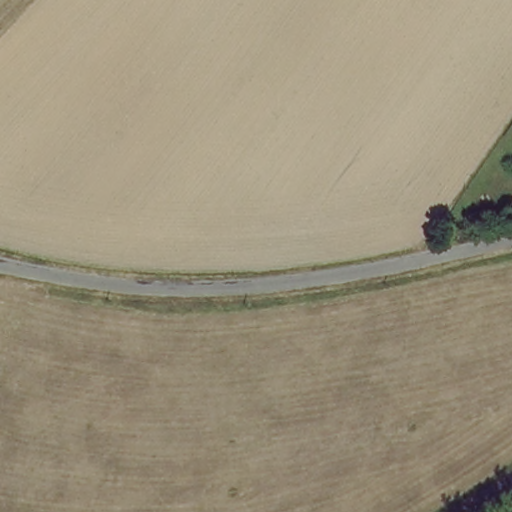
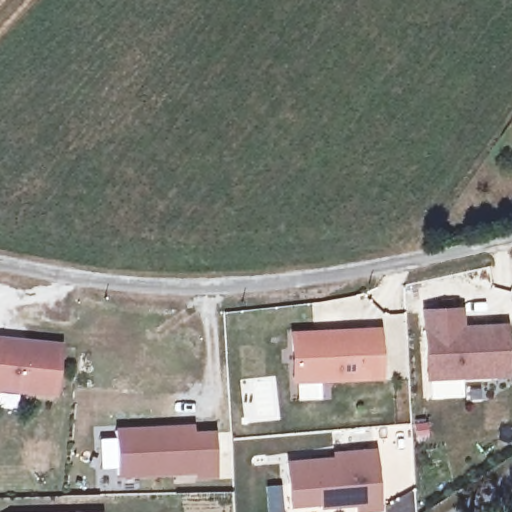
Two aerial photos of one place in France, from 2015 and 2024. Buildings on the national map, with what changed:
new [(507,324),(510,377),(426,380),(423,311),(462,308),(465,326),(507,324)]
new [(290,332),(380,327),(382,379),(292,383),(290,332)]
new [(0,392),(0,336),(62,342),(54,397),(0,392)]
new [(192,426),(192,433),(213,432),(216,475),(194,476),(193,471),(117,475),(114,431),(192,426)]
new [(355,505),(320,508),(319,505),(290,507),(287,462),(332,457),(332,452),(375,448),(380,511),(355,512),(355,505)]

